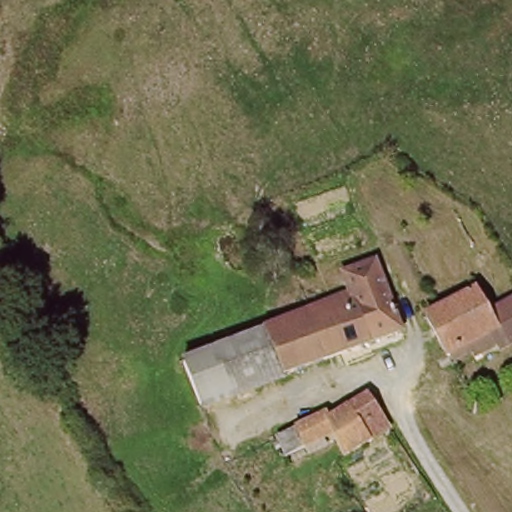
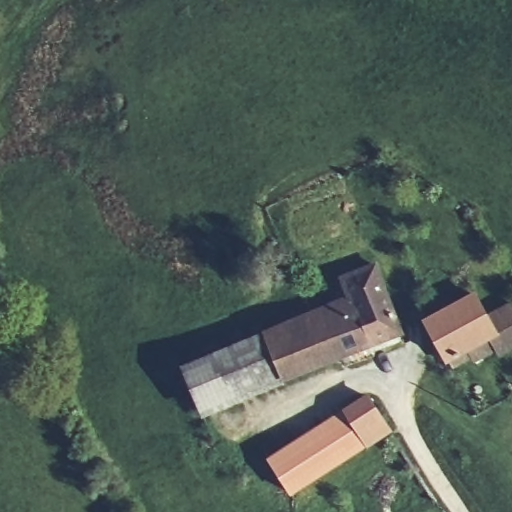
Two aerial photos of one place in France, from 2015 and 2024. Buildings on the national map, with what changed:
unchanged [(253,335),(355,292),(347,273),(374,262),(401,331),(273,387),(253,335)]
unchanged [(450,366),(444,357),(420,316),(469,287),(488,318),(511,306),(512,307),(512,346),(498,353),(495,348),(500,345),(493,328),(486,332),(493,345),(450,366)]
unchanged [(273,387),(206,413),(186,365),(253,335),(273,387)]
new [(342,409),(368,393),(392,431),(367,448),(292,496),(268,458),(342,409)]
demolished [(295,436),(325,414),(328,418),(348,405),(367,432),(346,447),(335,432),(305,452),(286,462),(278,448),(295,436)]

